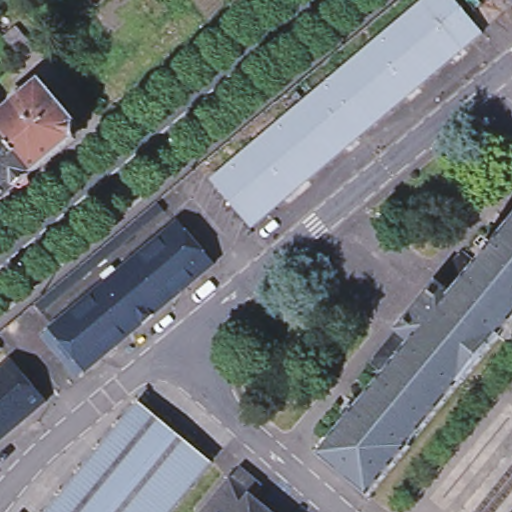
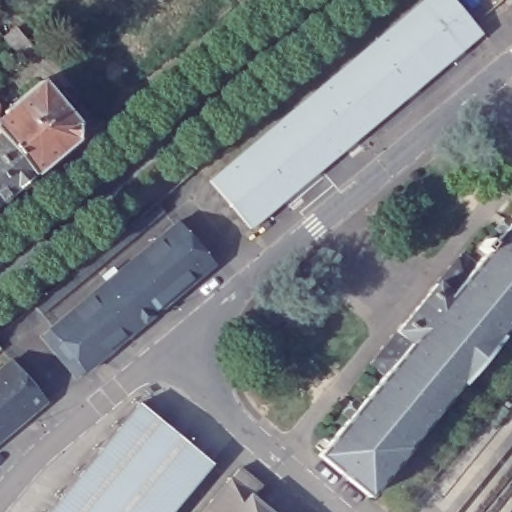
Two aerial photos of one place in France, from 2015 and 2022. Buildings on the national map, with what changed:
unchanged [(427,0),(454,0),(482,33),(250,227),(211,180),(427,0)]
unchanged [(39,181),(4,139),(0,134),(0,107),(3,111),(2,123),(5,126),(10,121),(9,118),(45,86),(82,131),(80,146),(39,181)]
unchanged [(0,212),(0,142),(4,139),(39,181),(0,212)]
unchanged [(33,301),(157,198),(167,211),(44,314),(33,301)]
unchanged [(50,329),(179,223),(215,267),(86,372),(50,329)]
unchanged [(498,343),(499,343),(458,392),(457,391),(407,451),(409,452),(369,502),(318,460),(349,423),(345,420),(355,409),(358,412),(385,380),(372,369),(398,337),(397,336),(435,290),(436,291),(462,258),(476,269),(502,238),(499,235),(509,224),(512,227),(512,226),(512,326),(498,343)]
unchanged [(0,351),(0,340),(5,347),(0,351)]
unchanged [(0,371),(12,361),(46,402),(0,440),(0,371)]
unchanged [(215,469),(179,512),(58,512),(144,410),(215,469)]
unchanged [(264,506),(268,509),(267,511),(269,512),(205,512),(210,505),(209,504),(212,499),(215,501),(227,485),(225,483),(230,478),(235,482),(242,472),(262,487),(254,497),(252,498),(263,507),(264,506)]

